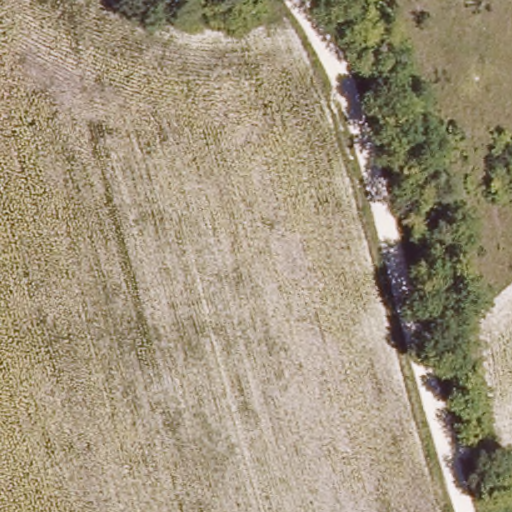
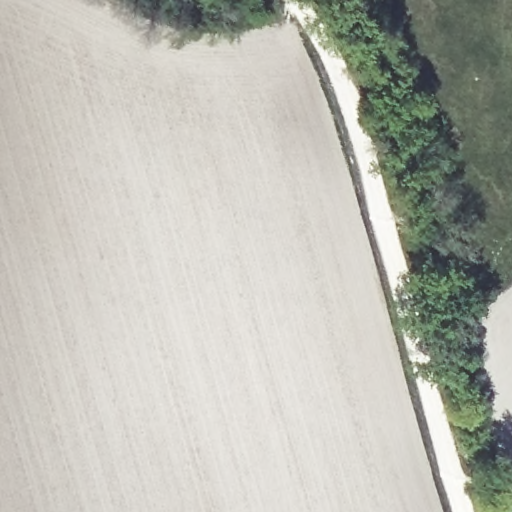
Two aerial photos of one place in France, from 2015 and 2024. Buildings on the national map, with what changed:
[]

